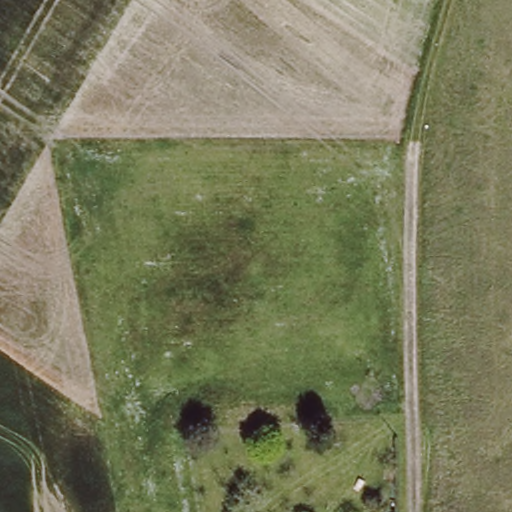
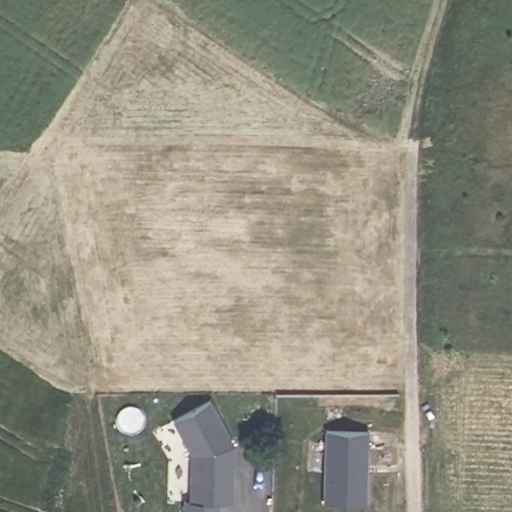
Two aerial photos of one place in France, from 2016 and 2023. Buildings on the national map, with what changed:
new [(207,400),(231,445),(229,503),(218,502),(219,512),(181,512),(181,500),(190,500),(191,454),(172,421),(207,400)]
new [(323,430),(364,431),(362,501),(321,500),(323,430)]

